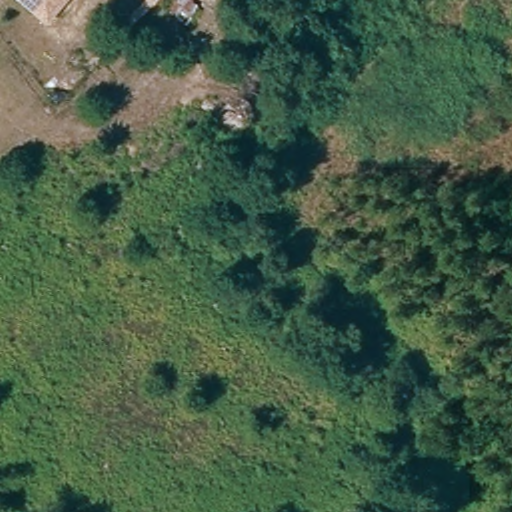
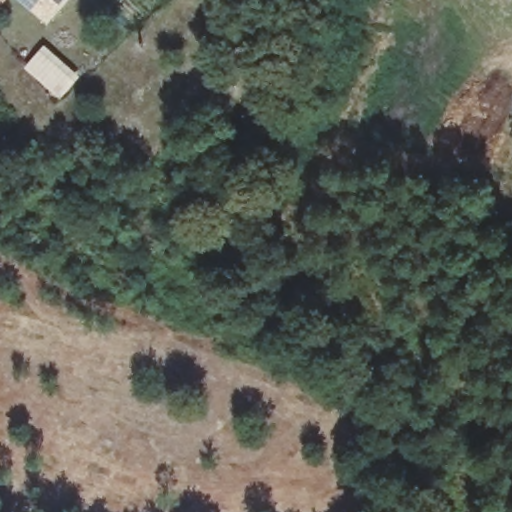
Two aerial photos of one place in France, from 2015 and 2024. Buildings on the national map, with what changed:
unchanged [(30,0),(73,0),(52,22),(30,0)]
new [(25,68),(45,45),(81,76),(61,100),(25,68)]

